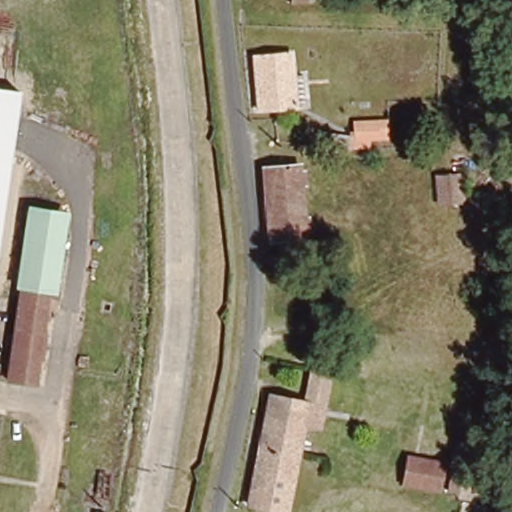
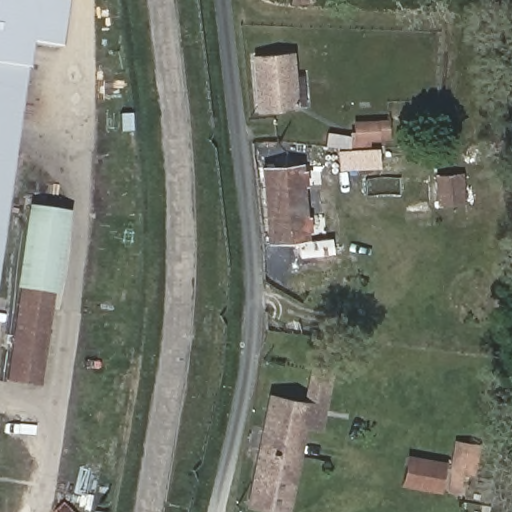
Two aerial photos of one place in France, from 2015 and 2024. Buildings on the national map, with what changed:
new [(59,49),(27,44),(25,69),(20,91),(0,89),(0,0),(66,0),(59,49)]
unchanged [(293,54),(297,107),(258,112),(255,57),(293,54)]
unchanged [(0,89),(20,91),(0,232),(0,89)]
unchanged [(347,151),(347,118),(392,114),(393,145),(347,151)]
unchanged [(270,249),(263,166),(302,164),(306,249),(270,249)]
unchanged [(463,173),(465,203),(437,206),(436,174),(463,173)]
unchanged [(8,371),(36,206),(75,213),(47,378),(8,371)]
unchanged [(322,432),(306,430),(290,512),(272,512),(246,507),(267,393),(304,400),(312,365),(334,369),(322,432)]
unchanged [(482,500),(496,450),(512,454),(512,472),(502,506),(482,500)]
unchanged [(447,461),(441,494),(401,485),(410,455),(447,461)]
new [(452,470),(482,480),(475,499),(446,491),(452,470)]

